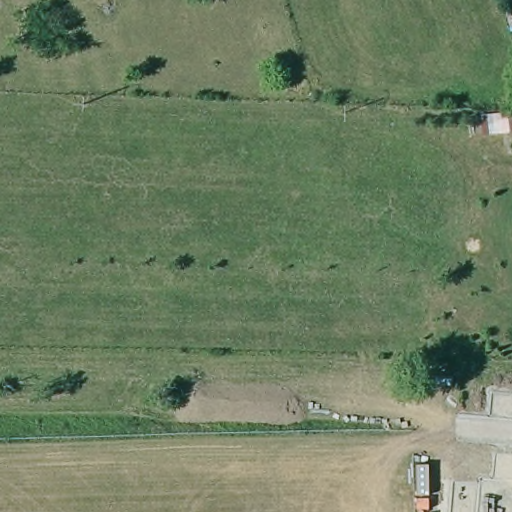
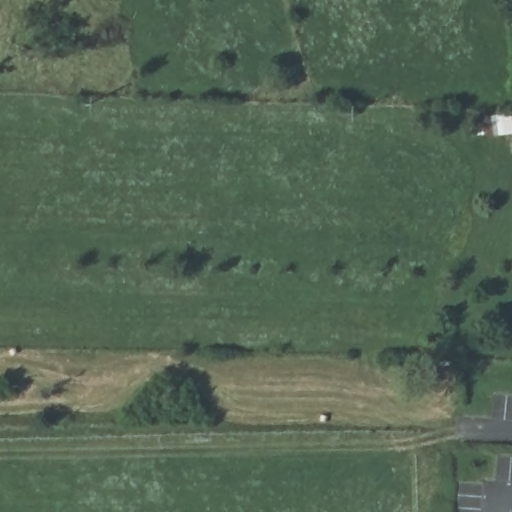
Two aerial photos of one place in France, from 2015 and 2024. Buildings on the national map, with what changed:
unchanged [(512,110),(512,132),(484,135),(480,112),(512,110)]

